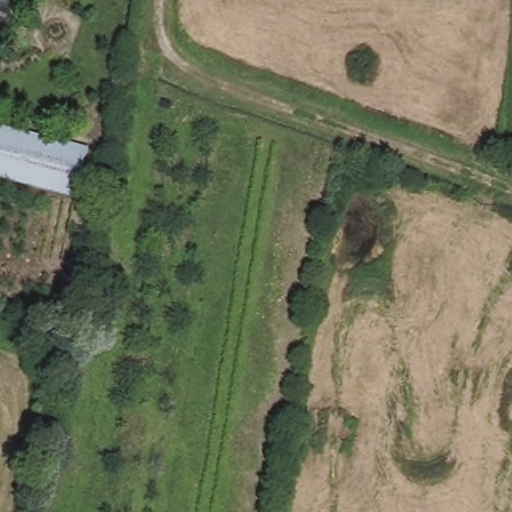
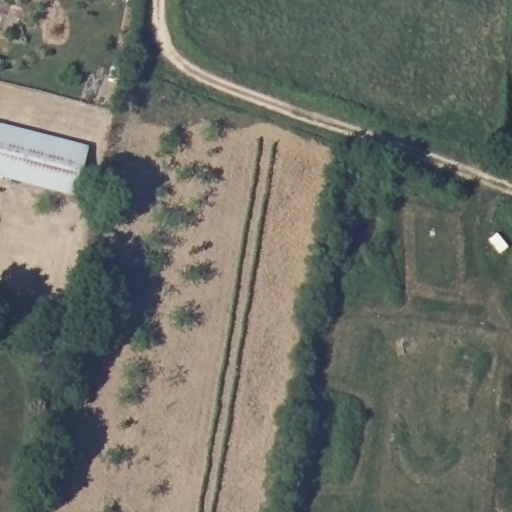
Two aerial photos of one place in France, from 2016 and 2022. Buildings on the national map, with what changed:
unchanged [(78,192),(0,173),(0,122),(88,145),(78,192)]

